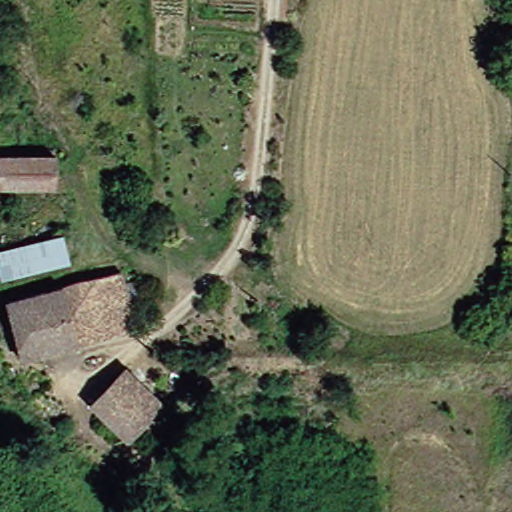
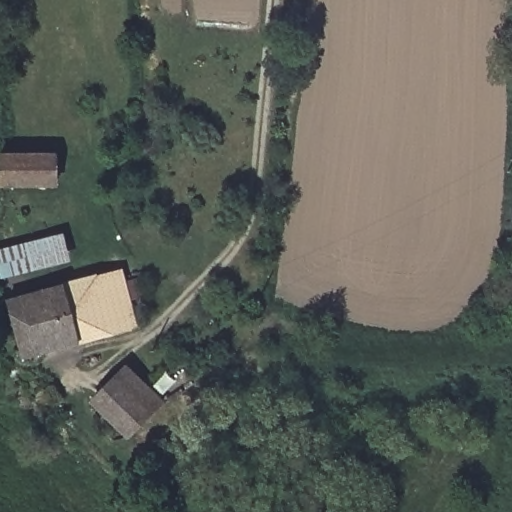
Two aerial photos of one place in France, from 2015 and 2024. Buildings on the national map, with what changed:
unchanged [(0,183),(0,155),(1,155),(51,155),(51,183),(5,183),(0,183)]
unchanged [(0,275),(0,245),(55,233),(61,260),(0,275)]
unchanged [(19,294),(110,267),(129,320),(14,356),(0,315),(0,299),(19,294)]
unchanged [(223,336),(223,296),(248,296),(248,336),(223,336)]
unchanged [(113,366),(153,403),(121,438),(80,401),(113,366)]

